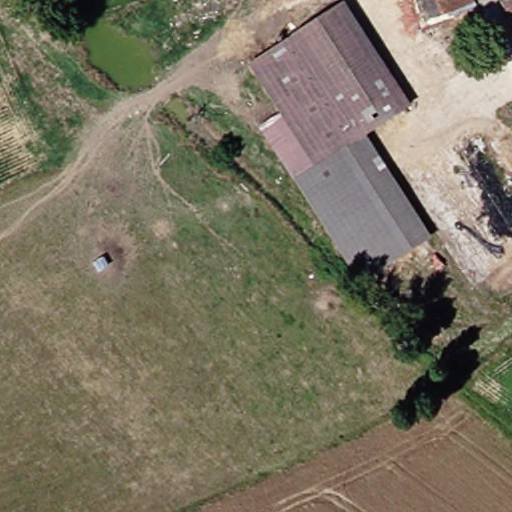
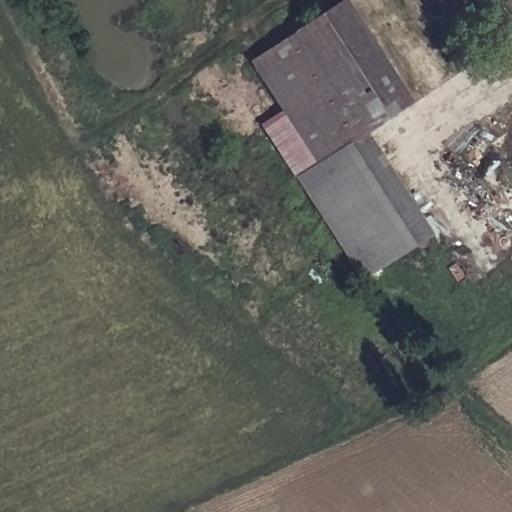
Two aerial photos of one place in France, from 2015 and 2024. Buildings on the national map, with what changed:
unchanged [(419,99),(361,136),(426,239),(358,282),(251,134),(293,106),(261,56),(349,0),(356,0),(419,99)]
unchanged [(471,6),(455,14),(435,14),(430,0),(469,0),(471,6)]
unchanged [(512,22),(499,0),(512,0),(512,22)]

